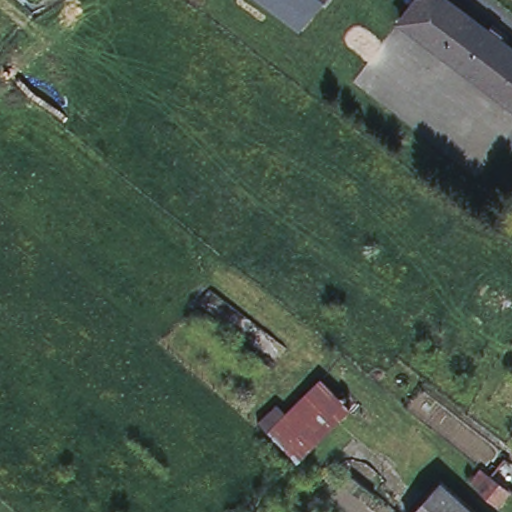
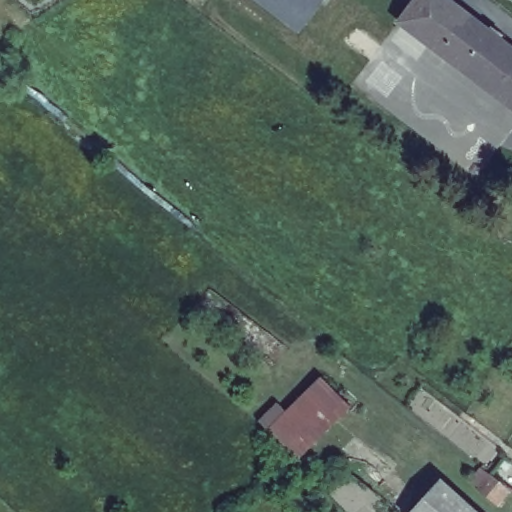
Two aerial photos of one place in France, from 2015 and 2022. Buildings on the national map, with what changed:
unchanged [(260,0),(321,0),(299,29),(260,0)]
unchanged [(445,0),(512,51),(512,107),(401,21),(416,0),(445,0)]
unchanged [(350,406),(297,458),(268,430),(321,377),(350,406)]
unchanged [(482,489),(495,474),(509,457),(512,459),(512,492),(501,506),(482,489)]
unchanged [(445,479),(482,512),(416,512),(445,479)]

